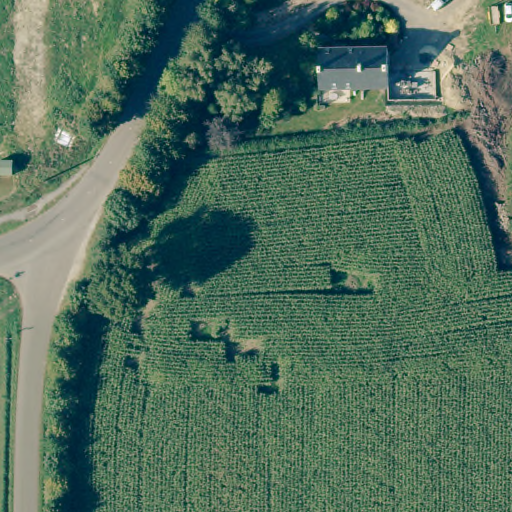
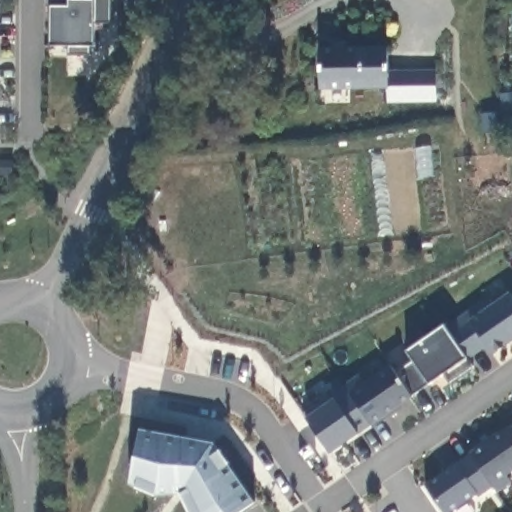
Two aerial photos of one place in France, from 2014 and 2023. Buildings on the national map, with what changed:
new [(94,0),(112,0),(111,24),(95,22),(94,47),(91,56),(70,56),(73,47),(51,46),(51,7),(69,7),(69,0),(95,0),(94,0)]
unchanged [(388,48),(389,87),(320,89),(319,50),(388,48)]
unchanged [(436,102),(389,103),(389,71),(435,70),(436,102)]
new [(335,398),(329,395),(358,375),(363,384),(389,365),(397,373),(414,362),(408,352),(445,326),(447,330),(489,297),(497,302),(510,293),(512,296),(512,342),(494,356),(485,348),(468,360),(473,366),(450,383),(446,373),(431,384),(412,397),(372,426),(359,434),(331,454),(306,418),(335,398)]
new [(511,425),(512,427),(512,472),(506,476),(512,482),(497,493),(493,487),(480,498),(478,494),(453,512),(443,512),(425,485),(471,453),(511,425)]
new [(231,464),(255,502),(240,512),(189,512),(181,495),(155,496),(136,488),(129,485),(140,429),(214,443),(221,450),(231,464)]

